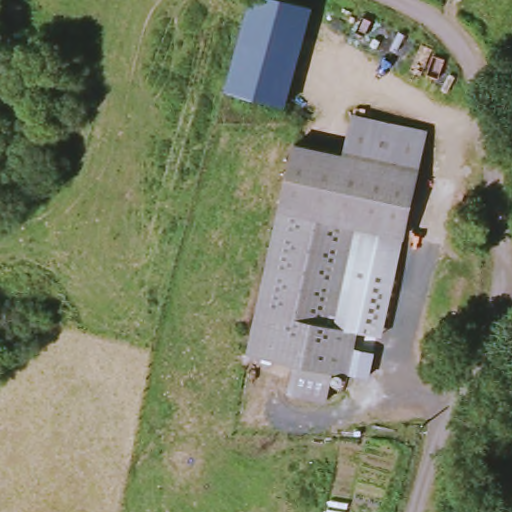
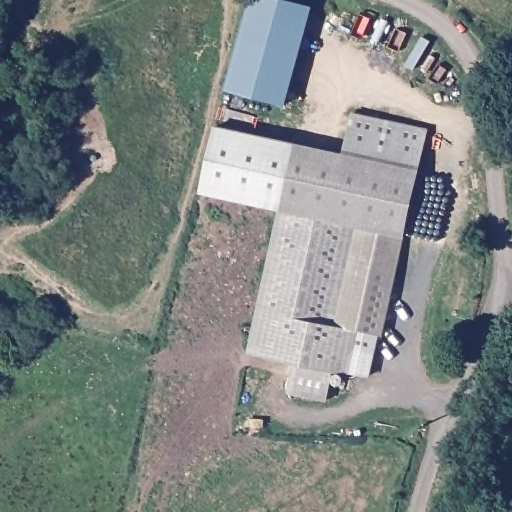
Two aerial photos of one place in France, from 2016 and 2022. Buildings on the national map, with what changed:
unchanged [(290,0),(311,5),(285,105),(224,90),(249,0),(290,0)]
unchanged [(428,133),(422,165),(344,149),(351,115),(428,133)]
new [(215,128),(295,145),(281,211),(202,194),(215,128)]
unchanged [(296,138),(344,149),(422,165),(404,246),(354,235),(280,218),(296,138)]
unchanged [(293,367),(250,359),(280,218),(354,235),(334,332),(357,337),(348,380),(334,377),(329,404),(327,407),(289,398),(290,393),(293,367)]
unchanged [(385,341),(357,337),(334,332),(354,235),(404,246),(385,341)]

